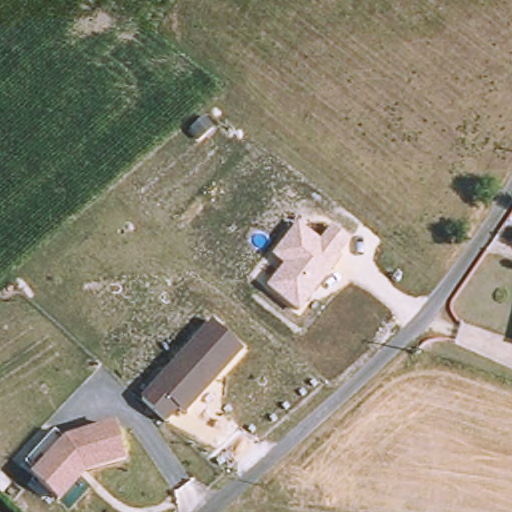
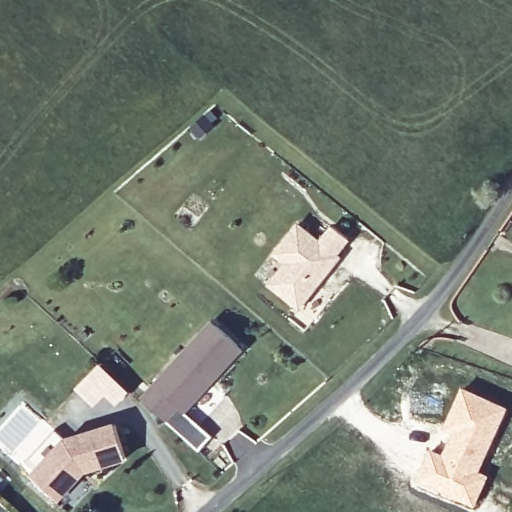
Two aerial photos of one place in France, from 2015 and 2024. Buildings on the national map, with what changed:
unchanged [(284,263),(273,255),(300,220),(321,239),(333,224),(351,240),(341,254),(343,256),(299,311),(268,285),(284,263)]
unchanged [(244,350),(186,415),(180,409),(169,420),(143,396),(212,321),(244,350)]
new [(429,448),(441,452),(450,435),(441,430),(462,386),(509,407),(481,470),(490,475),(474,508),(412,483),(429,448)]
unchanged [(56,498),(30,475),(19,465),(20,465),(53,429),(64,439),(113,423),(124,457),(83,470),(79,475),(56,498)]

